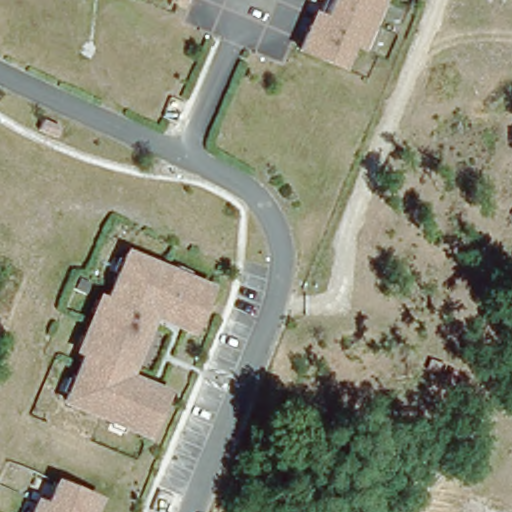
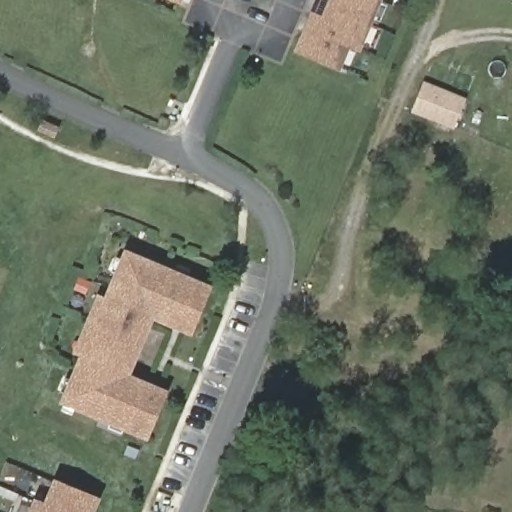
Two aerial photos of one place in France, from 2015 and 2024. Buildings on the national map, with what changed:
unchanged [(326,25),(337,0),(372,0),(381,5),(361,52),(351,49),(342,72),(302,55),(312,30),(316,21),(326,25)]
new [(426,84),(467,100),(456,128),(415,111),(426,84)]
unchanged [(58,140),(41,132),(45,123),(62,130),(58,140)]
unchanged [(162,397),(156,411),(147,432),(95,411),(65,399),(84,355),(114,281),(126,250),(209,285),(195,318),(194,320),(190,327),(145,309),(132,340),(120,371),(165,390),(162,397)]
unchanged [(43,504),(52,480),(92,497),(86,512),(28,512),(33,500),(43,504)]

